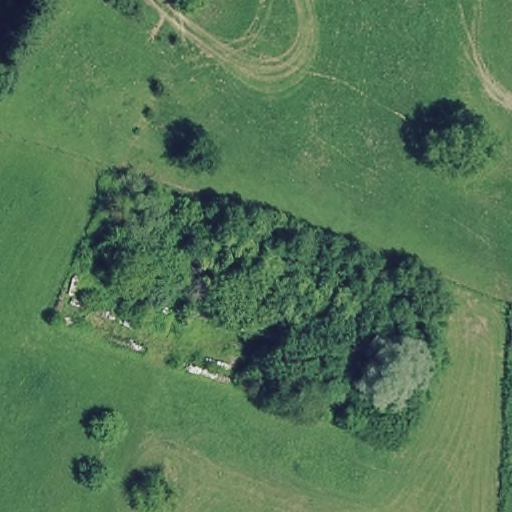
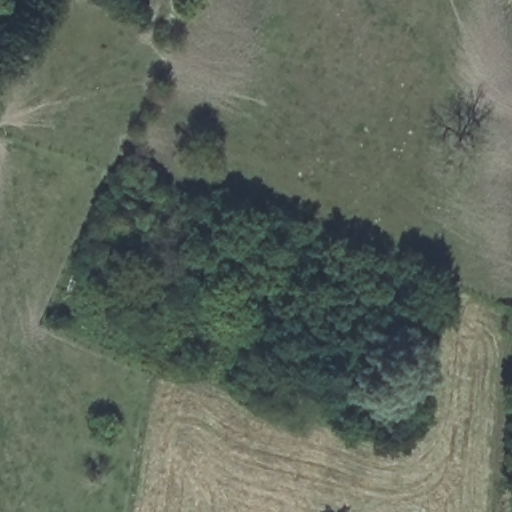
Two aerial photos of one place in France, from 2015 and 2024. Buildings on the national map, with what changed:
unchanged [(259,352),(284,365),(282,393),(253,386),(259,352)]

